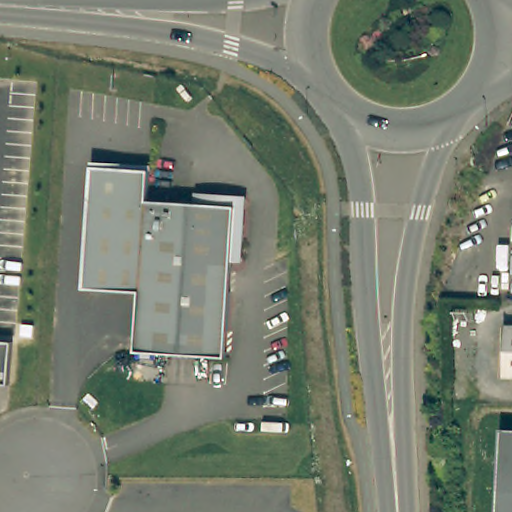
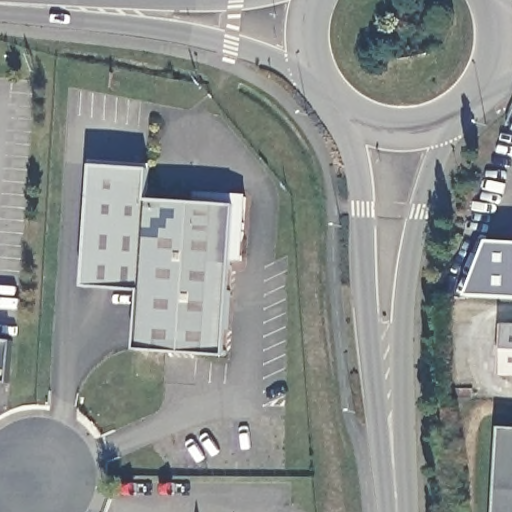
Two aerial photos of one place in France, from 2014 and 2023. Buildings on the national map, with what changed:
unchanged [(93,167),(125,169),(125,167),(151,169),(149,201),(196,204),(196,196),(246,200),(242,263),(233,262),(226,358),(136,352),(140,293),(85,289),(92,182),(93,167)]
new [(512,243),(512,300),(466,297),(488,242),(512,243)]
unchanged [(512,376),(502,376),(504,327),(512,327),(512,376)]
unchanged [(12,342),(9,385),(0,384),(0,340),(12,342)]
unchanged [(512,430),(512,512),(497,512),(501,429),(512,430)]

